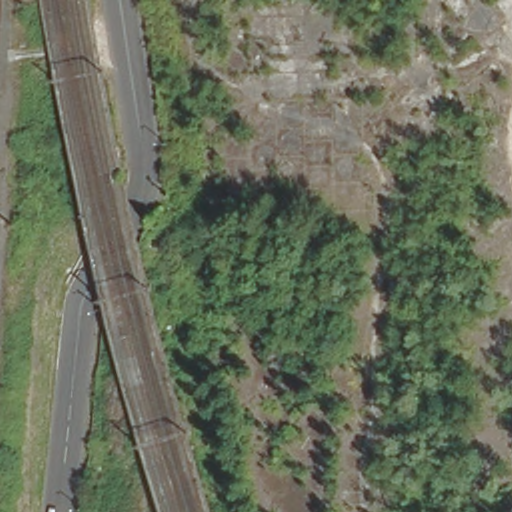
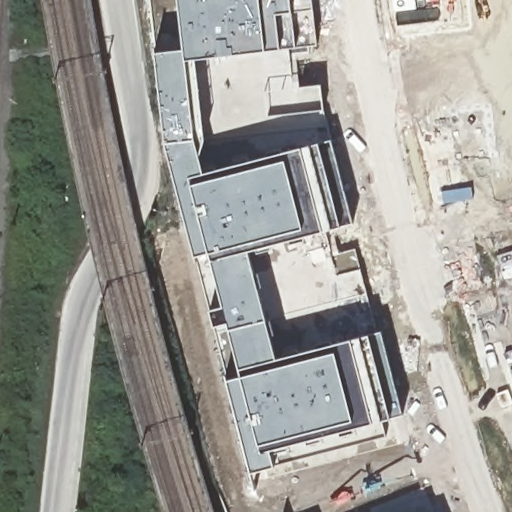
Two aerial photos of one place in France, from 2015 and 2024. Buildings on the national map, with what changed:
new [(251,471),(226,378),(214,326),(210,310),(195,254),(165,140),(150,0),(312,0),(312,10),(316,45),(298,47),(301,86),(322,85),(322,110),(331,139),(353,222),(340,225),(324,230),(331,255),(355,249),(376,333),(382,331),(404,415),(390,418),(381,421),(386,435),(275,465),(251,471)]
unchanged [(124,370),(116,372),(110,352),(118,350),(124,370)]

